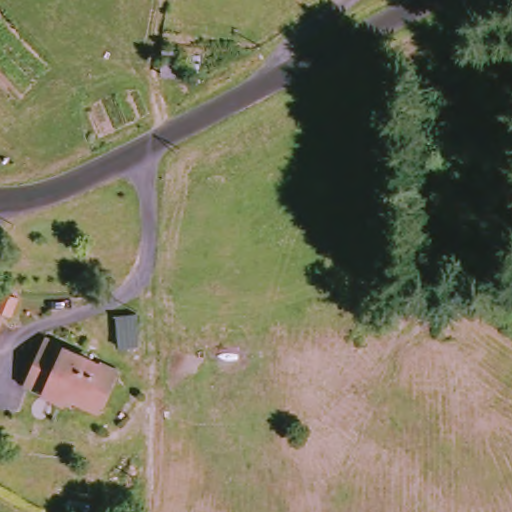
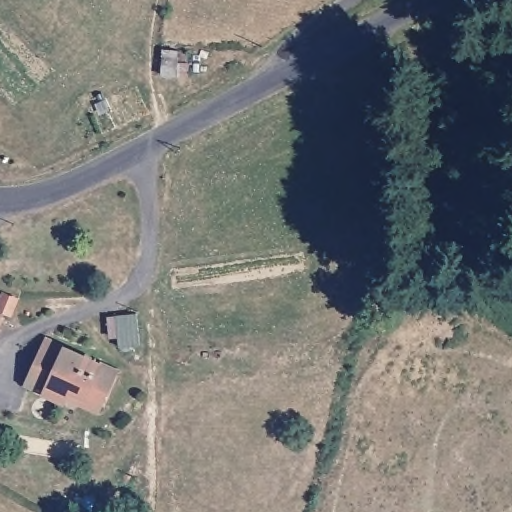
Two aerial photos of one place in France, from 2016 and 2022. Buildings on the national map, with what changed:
unchanged [(25,300),(17,317),(7,323),(0,335),(0,295),(3,289),(25,300)]
unchanged [(141,307),(147,338),(130,341),(125,342),(120,311),(132,309),(141,307)]
unchanged [(73,404),(36,391),(53,343),(122,368),(112,402),(108,415),(73,404)]

